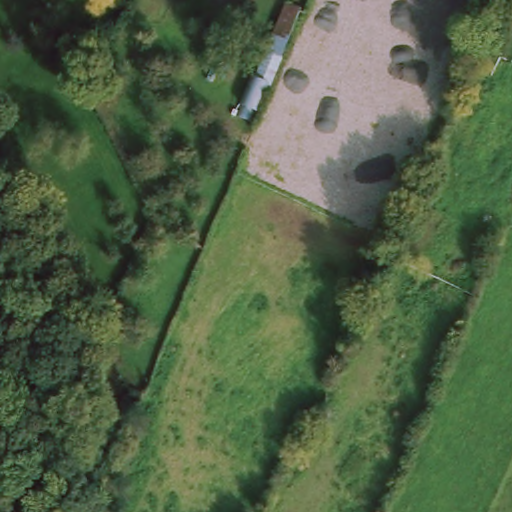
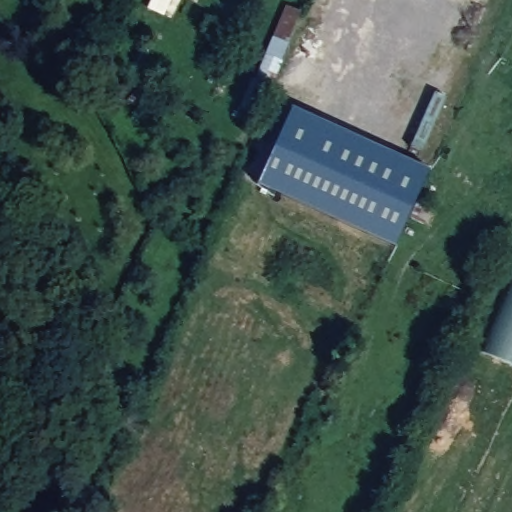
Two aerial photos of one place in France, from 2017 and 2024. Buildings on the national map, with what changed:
new [(300,8),(280,56),(265,50),(285,1),(300,8)]
new [(434,206),(426,224),(410,218),(397,247),(259,184),(294,108),(431,170),(418,199),(434,206)]
demolished [(442,184),(469,129),(512,148),(512,218),(442,184)]
new [(481,351),(512,280),(512,356),(509,363),(495,357),(481,351)]

